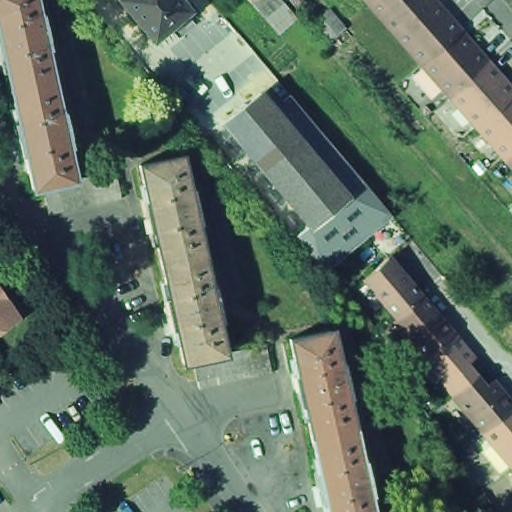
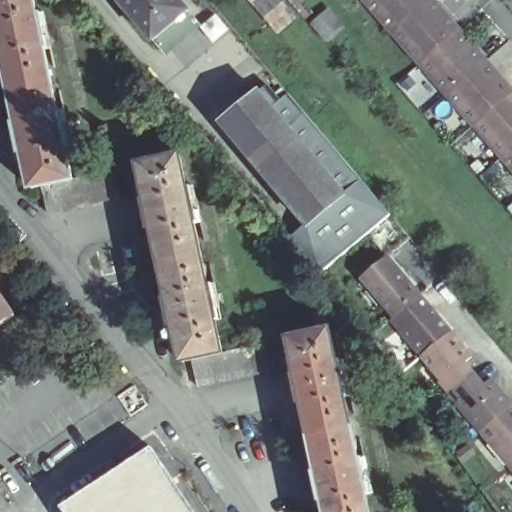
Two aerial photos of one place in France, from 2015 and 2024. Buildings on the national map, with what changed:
unchanged [(33,29),(40,27),(43,41),(37,42),(45,85),(4,94),(0,75),(0,0),(27,0),(33,29)]
unchanged [(152,44),(117,3),(120,0),(176,0),(188,14),(152,44)]
unchanged [(287,1),(269,17),(254,0),(286,0),(287,1)]
unchanged [(429,0),(393,31),(366,0),(367,0),(429,0)]
unchanged [(393,31),(429,0),(438,11),(440,10),(453,25),(450,28),(455,34),(420,63),(393,31)]
unchanged [(420,63),(455,34),(459,39),(463,35),(476,50),(474,52),(483,62),(448,94),(420,63)]
unchanged [(448,94),(483,62),(493,74),(495,72),(508,87),(505,90),(509,95),(475,125),(448,94)]
unchanged [(55,126),(61,125),(62,125),(65,139),(64,139),(57,140),(67,183),(36,190),(25,192),(4,94),(45,85),(55,126)]
unchanged [(349,193),(277,106),(293,93),(387,205),(395,214),(342,259),(312,224),(349,193)]
unchanged [(475,125),(509,95),(512,99),(512,148),(502,156),(475,125)]
unchanged [(312,224),(312,223),(240,137),(241,136),(228,120),(244,108),(257,123),(277,106),(349,193),(312,224)]
unchanged [(502,156),(512,148),(512,167),(502,156)]
unchanged [(189,199),(195,197),(197,197),(199,210),(198,210),(192,211),(201,254),(175,260),(160,263),(138,164),(180,155),(189,199)]
unchanged [(67,183),(108,174),(115,201),(42,217),(36,190),(67,183)]
unchanged [(325,272),(295,237),(312,223),(312,224),(342,259),(325,272)]
unchanged [(387,292),(369,271),(392,252),(425,290),(400,311),(387,292)]
unchanged [(182,361),(160,263),(175,260),(201,254),(210,296),(217,295),(217,294),(220,307),(213,309),(222,352),(192,360),(182,361)]
unchanged [(455,327),(427,350),(400,311),(425,290),(455,327)]
unchanged [(0,325),(0,293),(15,315),(0,325)]
unchanged [(476,352),(470,357),(479,369),(456,388),(446,376),(448,375),(427,350),(455,327),(476,352)]
unchanged [(330,329),(339,372),(345,371),(347,370),(349,384),(348,384),(342,385),(352,427),(315,435),(310,436),(288,338),(307,333),(330,329)]
unchanged [(222,352),(229,351),(264,343),(270,370),(198,386),(192,360),(222,352)]
unchanged [(489,380),(496,375),(512,394),(512,404),(486,425),(455,389),(456,388),(479,369),(489,380)]
unchanged [(486,425),(512,404),(512,456),(486,425)]
unchanged [(360,470),(367,468),(370,481),(363,483),(370,512),(326,512),(310,436),(315,435),(352,427),(360,470)]
new [(189,512),(60,512),(54,502),(145,444),(189,512)]

